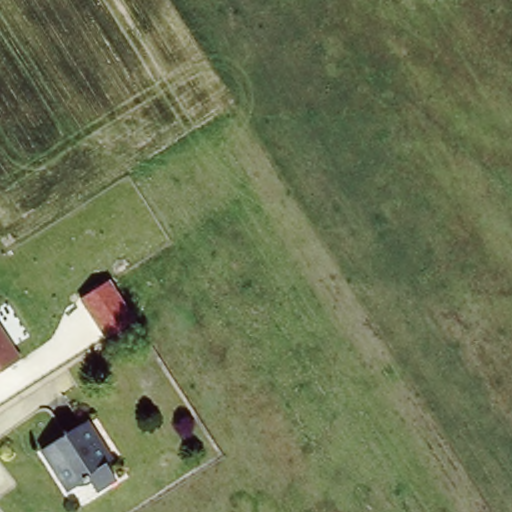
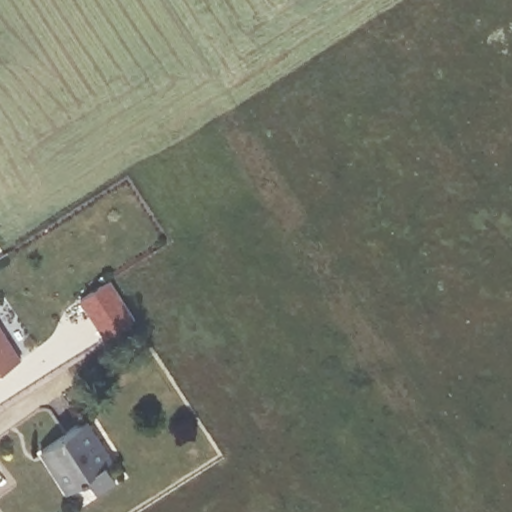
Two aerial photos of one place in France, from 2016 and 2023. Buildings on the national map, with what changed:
unchanged [(80,300),(110,280),(133,319),(105,336),(80,300)]
unchanged [(22,358),(0,371),(0,322),(22,358)]
unchanged [(67,493),(42,454),(85,423),(110,460),(107,462),(118,480),(99,493),(92,483),(70,498),(67,493)]

